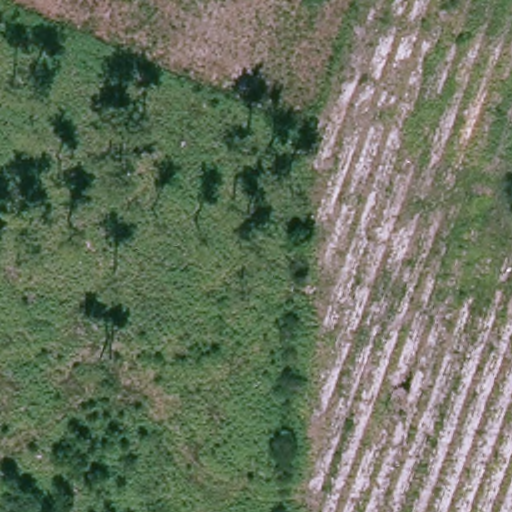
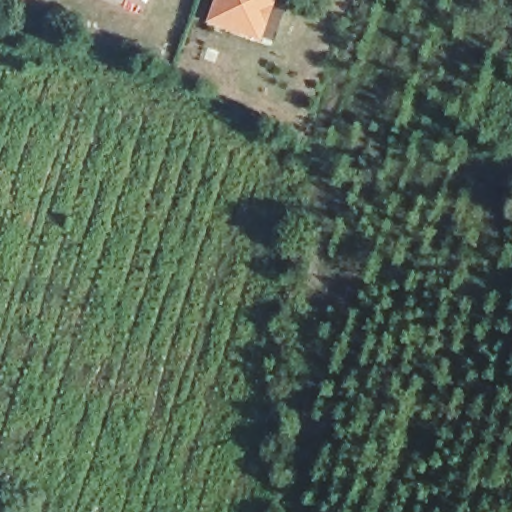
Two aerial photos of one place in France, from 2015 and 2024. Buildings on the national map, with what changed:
new [(264,40),(208,20),(215,0),(278,0),(264,40)]

